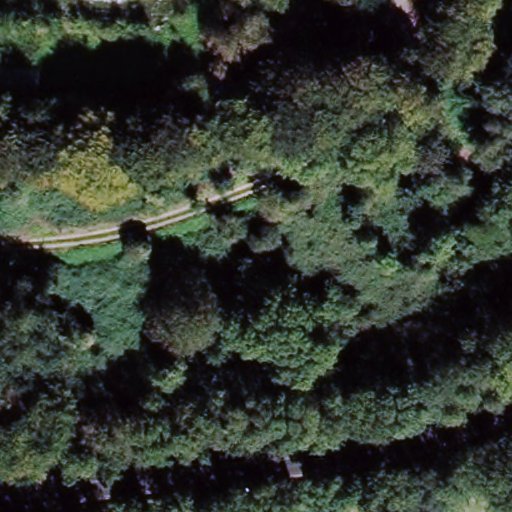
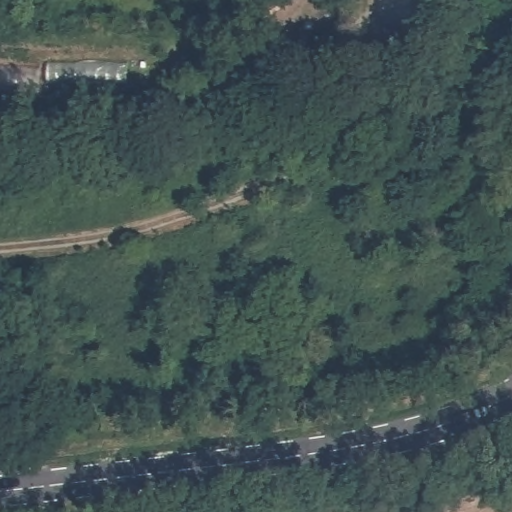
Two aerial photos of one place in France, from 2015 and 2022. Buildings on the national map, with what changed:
unchanged [(385,75),(368,62),(387,40),(402,53),(385,75)]

